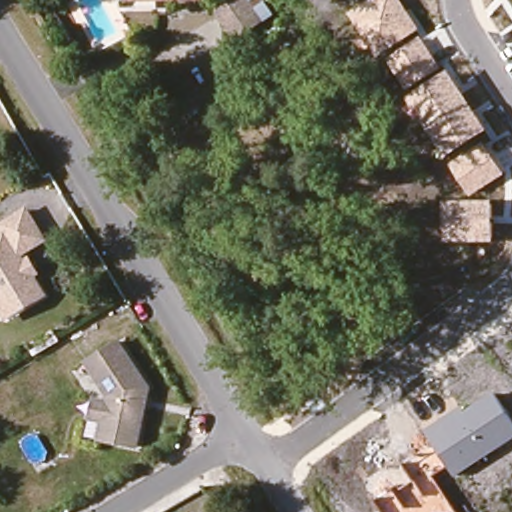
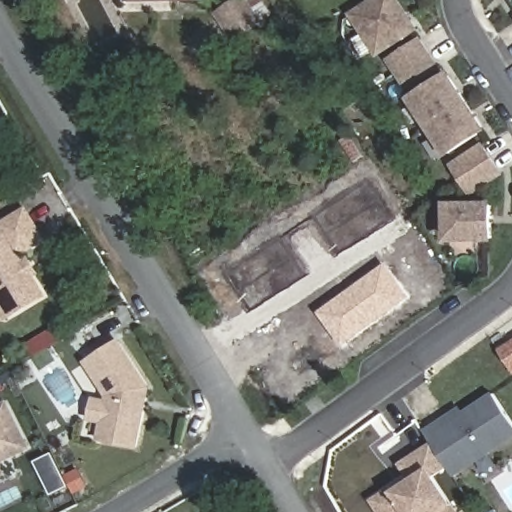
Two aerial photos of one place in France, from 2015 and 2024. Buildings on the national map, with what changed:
unchanged [(122,6),(122,0),(204,0),(204,4),(122,6)]
unchanged [(350,14),(370,0),(405,0),(421,28),(377,56),(350,14)]
unchanged [(260,23),(242,34),(230,14),(248,3),(260,23)]
unchanged [(408,88),(387,59),(424,34),(443,65),(408,88)]
unchanged [(446,158),(406,97),(451,69),(490,131),(446,158)]
unchanged [(470,196),(451,163),(485,140),(508,174),(470,196)]
unchanged [(495,242),(448,242),(448,202),(496,200),(495,242)]
unchanged [(0,231),(0,226),(23,212),(40,241),(18,255),(23,263),(25,262),(33,275),(31,277),(42,295),(26,305),(20,295),(0,307),(0,235),(2,234),(0,231)]
new [(386,263),(411,298),(344,348),(317,313),(386,263)]
unchanged [(92,401),(105,404),(106,398),(86,364),(118,344),(147,392),(145,399),(140,402),(138,409),(141,414),(132,450),(95,441),(100,424),(87,421),(92,401)]
new [(512,344),(512,367),(501,351),(512,344)]
unchanged [(455,475),(448,467),(436,474),(459,512),(385,512),(376,498),(397,484),(402,489),(415,481),(402,461),(435,439),(427,431),(465,404),(469,409),(497,391),(512,413),(512,439),(455,475)]
new [(0,459),(0,405),(4,403),(26,446),(0,459)]
new [(54,453),(70,484),(51,495),(34,463),(54,453)]

